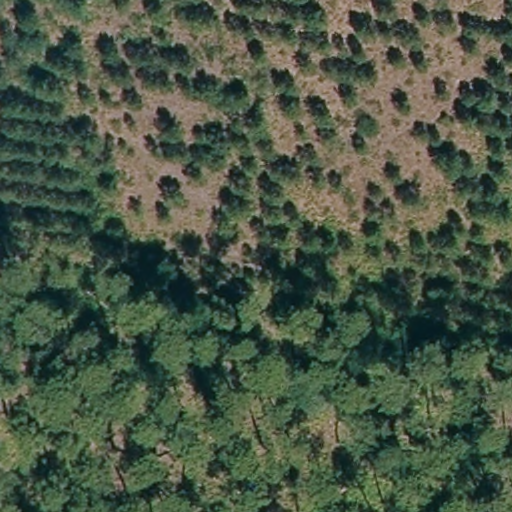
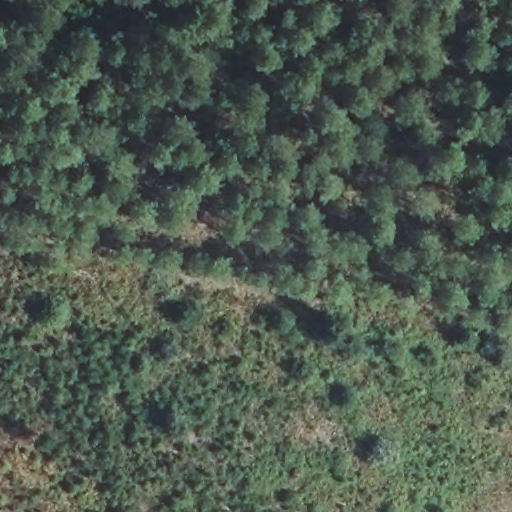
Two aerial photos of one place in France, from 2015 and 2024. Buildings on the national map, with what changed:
[]

